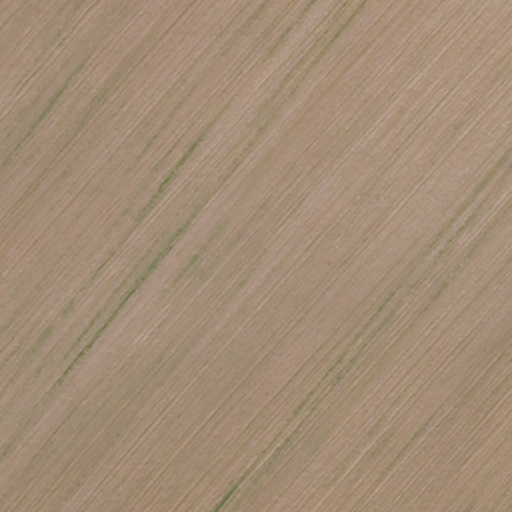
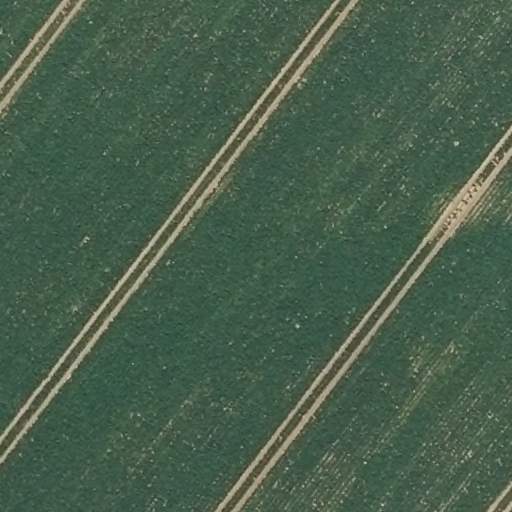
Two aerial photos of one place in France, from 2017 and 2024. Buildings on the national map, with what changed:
[]

